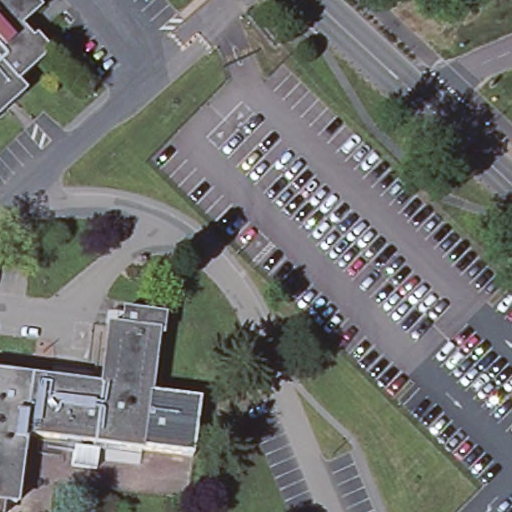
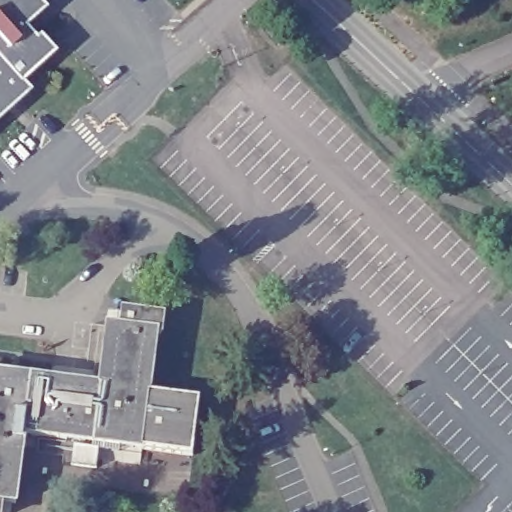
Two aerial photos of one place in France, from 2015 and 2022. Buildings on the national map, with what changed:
unchanged [(19,26),(32,40),(35,38),(48,52),(14,84),(23,93),(0,113),(0,0),(29,0),(38,10),(19,26)]
unchanged [(94,391),(103,333),(117,335),(119,316),(158,322),(156,341),(151,340),(143,398),(193,405),(186,460),(22,436),(13,506),(0,504),(0,378),(94,391)]

